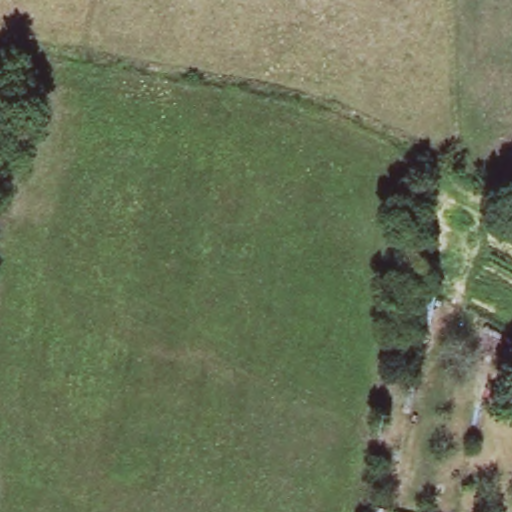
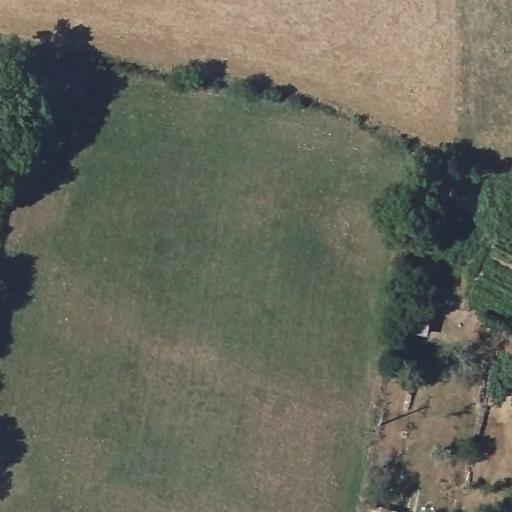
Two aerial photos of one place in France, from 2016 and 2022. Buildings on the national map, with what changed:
unchanged [(440,270),(434,292),(431,333),(399,324),(414,266),(440,270)]

